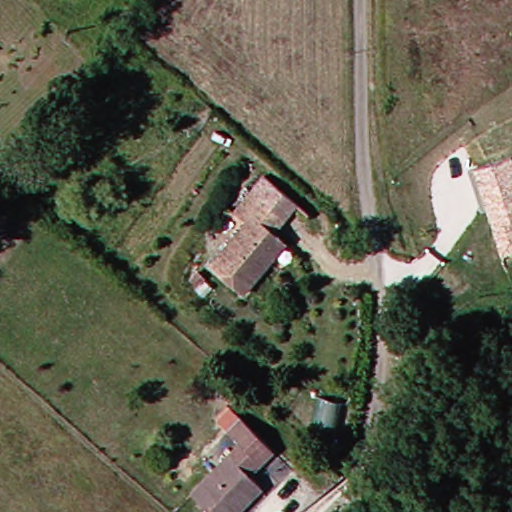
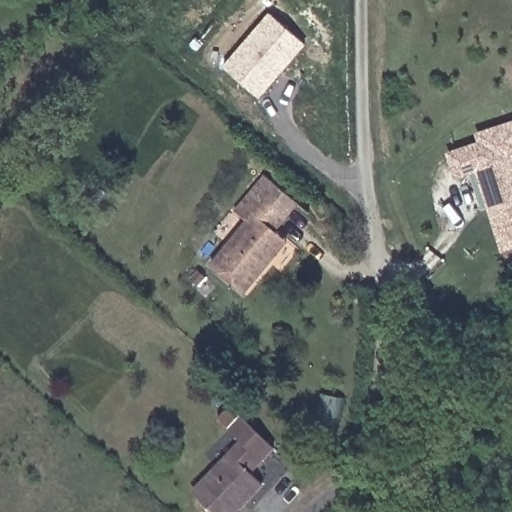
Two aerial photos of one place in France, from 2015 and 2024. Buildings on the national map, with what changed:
new [(223,67),(269,13),(306,45),(260,99),(223,67)]
new [(446,152),(477,141),(475,133),(512,121),(512,157),(474,169),(454,176),(446,152)]
unchanged [(512,157),(512,249),(502,253),(474,169),(512,157)]
unchanged [(274,262),(247,293),(215,265),(251,222),(239,211),(266,179),(299,206),(278,230),(285,236),(292,242),(274,262)]
unchanged [(216,512),(197,492),(246,442),(234,431),(248,417),(278,447),(266,460),(254,471),(267,484),(239,512),(216,512)]

